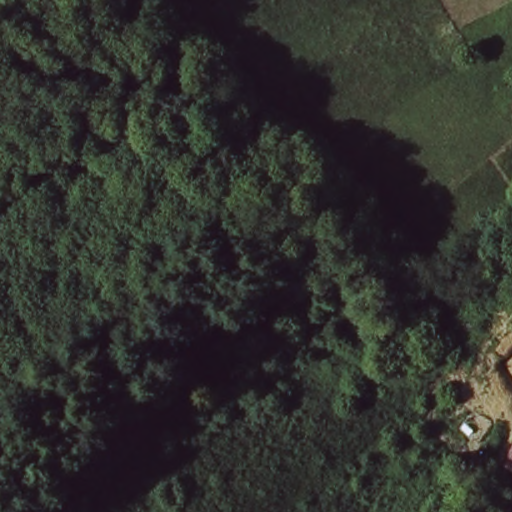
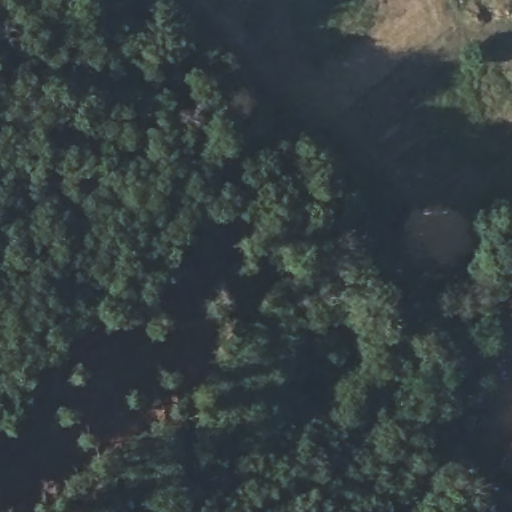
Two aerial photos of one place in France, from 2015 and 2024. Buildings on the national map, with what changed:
unchanged [(512,372),(512,375),(511,373),(512,372)]
unchanged [(512,439),(512,475),(498,468),(512,439)]

